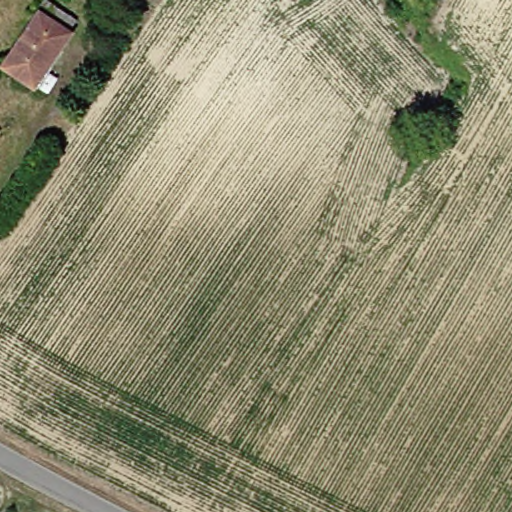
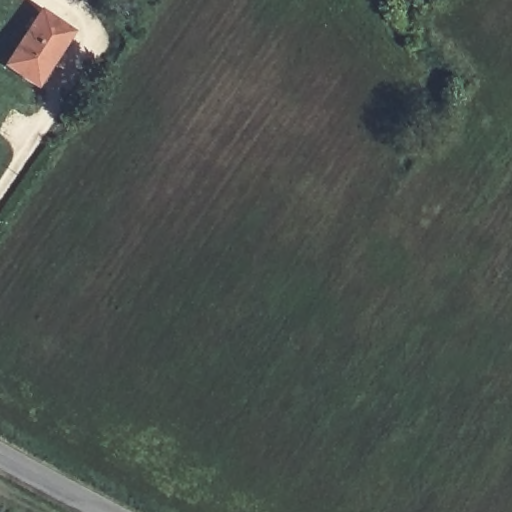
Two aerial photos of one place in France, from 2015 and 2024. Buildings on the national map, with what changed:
unchanged [(62,32),(41,60),(47,67),(31,90),(0,68),(0,52),(32,9),(62,32)]

